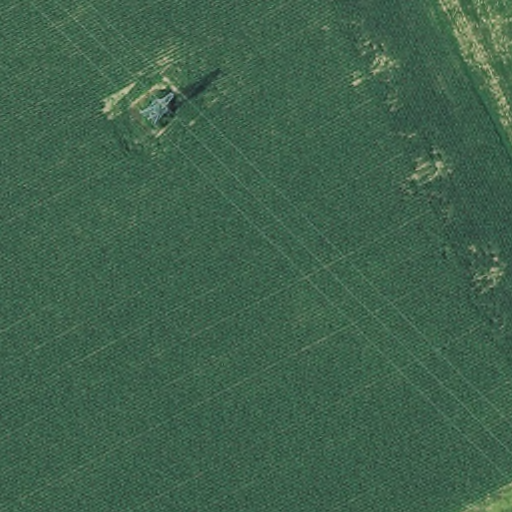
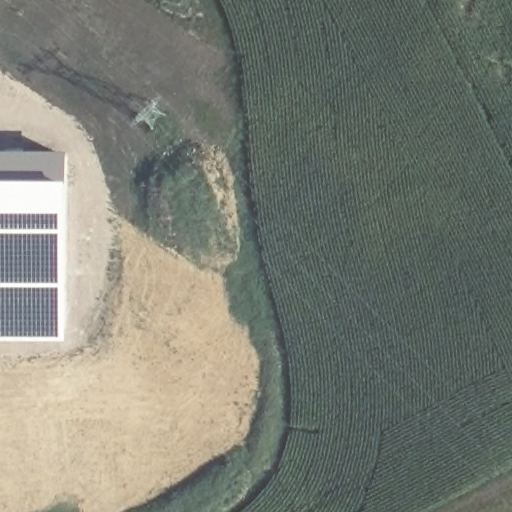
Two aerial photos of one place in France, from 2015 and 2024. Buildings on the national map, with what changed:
new [(68,201),(66,343),(0,343),(0,152),(65,152),(68,201)]

